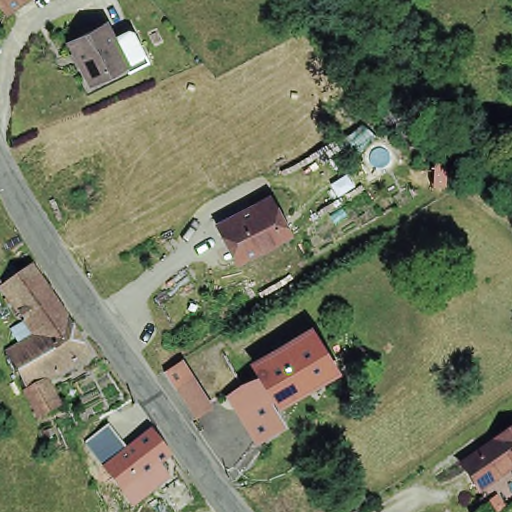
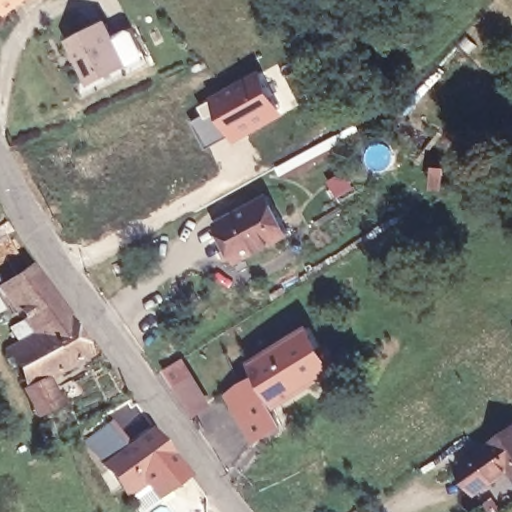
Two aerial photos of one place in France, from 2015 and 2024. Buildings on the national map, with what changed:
unchanged [(31,0),(0,23),(0,0),(31,0)]
unchanged [(86,85),(66,48),(102,29),(110,44),(128,34),(143,61),(146,67),(127,77),(123,71),(89,89),(86,85)]
new [(258,66),(286,112),(234,142),(231,135),(211,96),(258,66)]
new [(202,113),(196,106),(211,96),(231,135),(208,148),(191,120),(202,113)]
unchanged [(266,202),(286,238),(286,239),(263,252),(238,265),(218,228),(266,202)]
unchanged [(29,330),(0,288),(0,279),(24,263),(60,313),(29,330)]
unchanged [(33,412),(20,385),(0,345),(29,330),(60,313),(81,352),(40,374),(53,401),(33,412)]
unchanged [(276,405),(269,393),(264,395),(281,427),(256,442),(236,411),(241,406),(235,393),(242,389),(239,385),(258,375),(251,363),(306,329),(319,348),(309,353),(321,378),(276,405)]
unchanged [(188,377),(188,378),(205,404),(191,414),(173,387),(173,386),(188,377)]
unchanged [(476,491),(464,474),(459,466),(512,428),(512,471),(509,467),(476,491)]
unchanged [(130,492),(115,471),(158,438),(174,457),(130,492)]
unchanged [(133,493),(154,478),(161,489),(178,478),(193,500),(175,512),(171,507),(164,512),(145,512),(133,493)]

